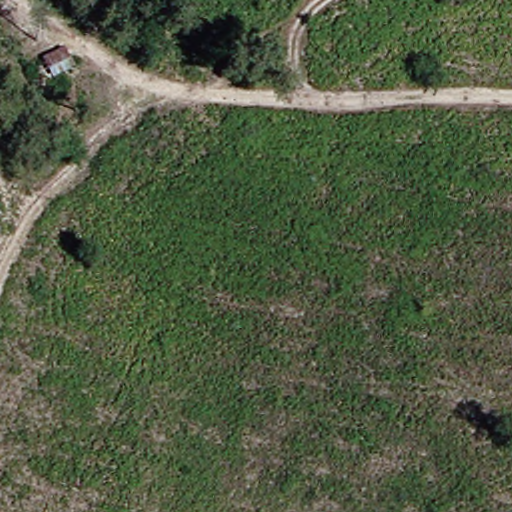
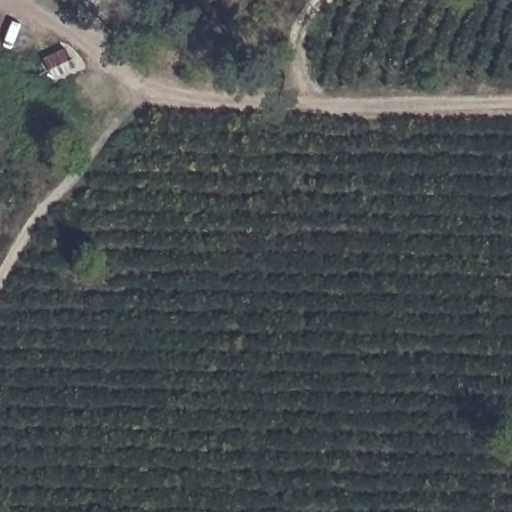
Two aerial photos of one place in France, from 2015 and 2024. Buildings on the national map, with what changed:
unchanged [(68,2),(64,0),(69,0),(68,2)]

